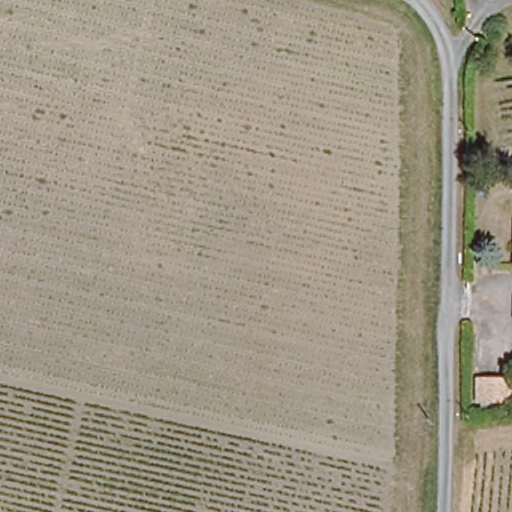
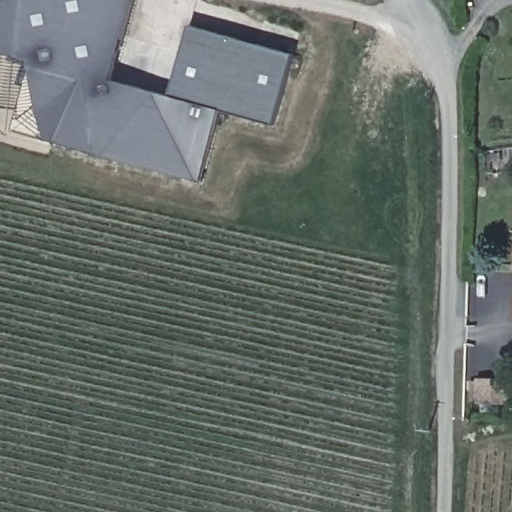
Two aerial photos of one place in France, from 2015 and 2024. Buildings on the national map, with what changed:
new [(167,96),(188,27),(289,56),(271,126),(219,112),(200,182),(13,132),(19,58),(0,52),(0,0),(134,0),(110,81),(167,96)]
unchanged [(510,225),(512,225),(512,263),(510,263),(510,225)]

